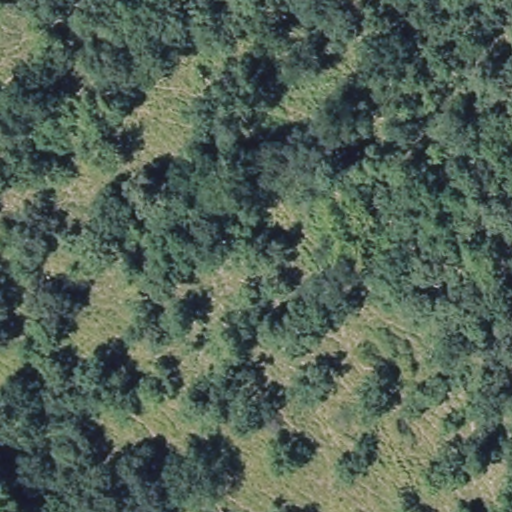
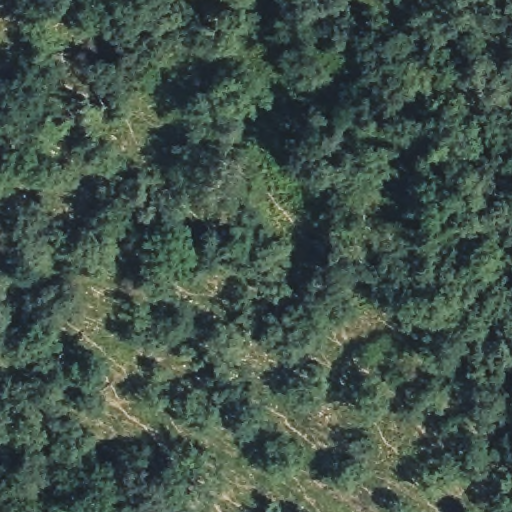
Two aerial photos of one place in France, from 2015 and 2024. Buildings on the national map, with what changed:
[]

